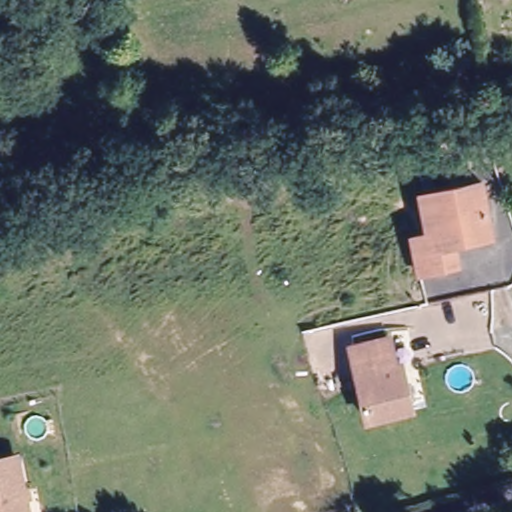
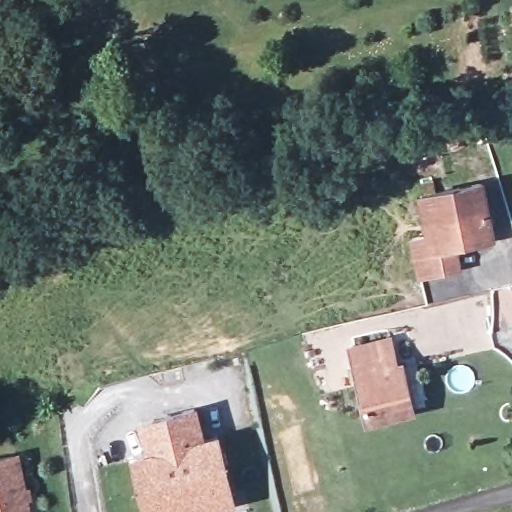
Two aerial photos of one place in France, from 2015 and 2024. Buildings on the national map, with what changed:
unchanged [(433,268),(415,272),(408,235),(425,232),(418,193),(479,181),(490,235),(450,244),(454,264),(433,268)]
unchanged [(390,339),(397,371),(404,369),(413,410),(370,420),(352,347),(390,339)]
new [(147,452),(138,420),(199,406),(205,437),(220,433),(236,506),(211,512),(146,512),(131,456),(147,452)]
demolished [(328,416),(337,462),(317,466),(309,420),(328,416)]
unchanged [(29,512),(0,512),(0,452),(16,449),(29,512)]

